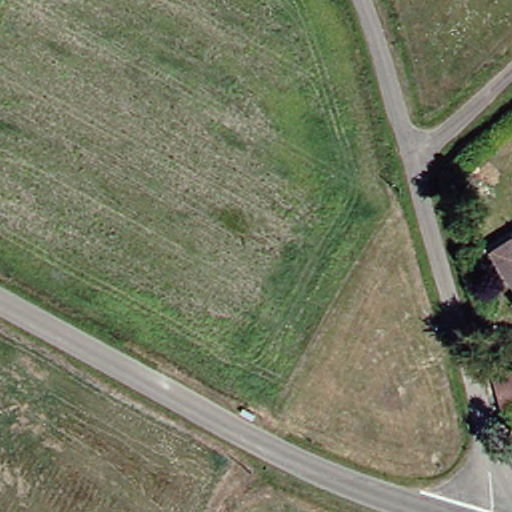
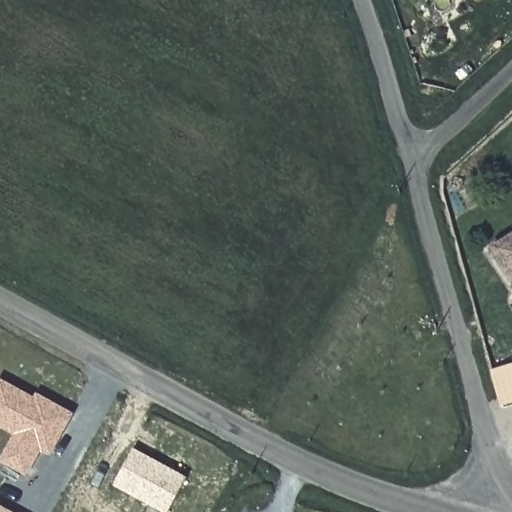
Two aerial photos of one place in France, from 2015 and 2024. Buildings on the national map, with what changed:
unchanged [(512,239),(512,268),(498,247),(512,239)]
unchanged [(495,369),(512,365),(512,401),(504,403),(495,369)]
new [(53,451),(40,446),(28,468),(2,455),(12,433),(5,430),(7,426),(0,422),(0,376),(1,374),(73,412),(53,451)]
new [(116,481),(135,447),(187,475),(168,509),(116,481)]
new [(13,512),(0,512),(0,504),(13,512)]

